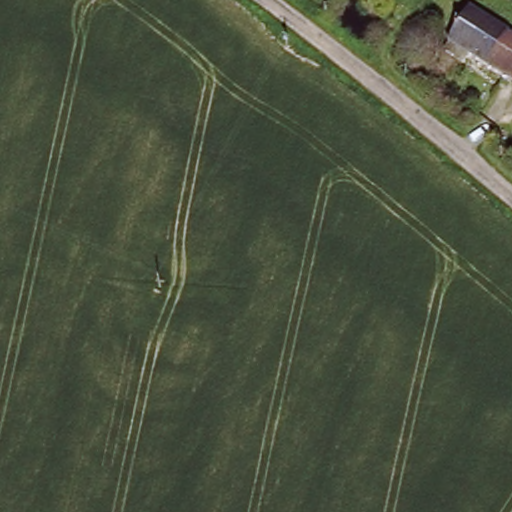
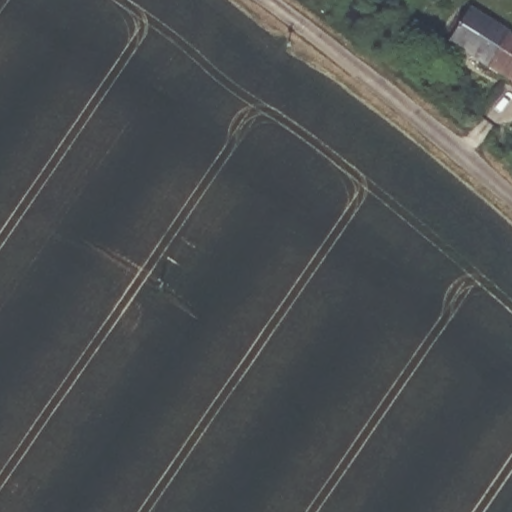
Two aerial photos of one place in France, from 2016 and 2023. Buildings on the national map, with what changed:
unchanged [(472,5),(512,29),(510,31),(512,32),(512,72),(477,51),(473,58),(450,47),(472,5)]

